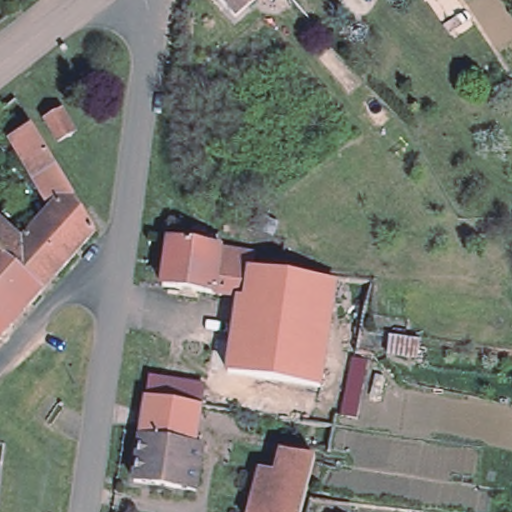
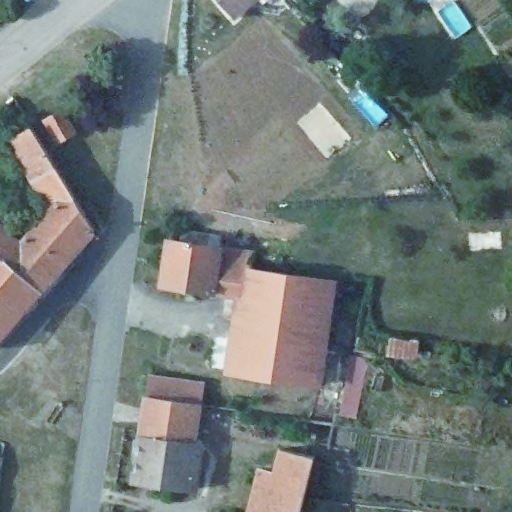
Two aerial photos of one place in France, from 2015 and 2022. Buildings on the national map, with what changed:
unchanged [(236,15),(220,0),(251,0),(236,15)]
unchanged [(62,107),(74,127),(58,137),(45,116),(62,107)]
unchanged [(33,125),(70,185),(52,204),(42,195),(11,138),(33,125)]
unchanged [(70,185),(95,227),(55,272),(22,238),(52,204),(70,185)]
unchanged [(22,238),(55,272),(42,287),(0,251),(0,219),(22,238)]
unchanged [(220,248),(213,292),(162,285),(168,241),(220,248)]
unchanged [(255,254),(253,270),(250,269),(245,298),(238,297),(238,296),(213,292),(220,248),(255,254)]
unchanged [(42,287),(10,323),(0,314),(0,251),(42,287)]
unchanged [(214,336),(232,339),(238,297),(245,298),(250,269),(253,270),(334,282),(318,386),(227,372),(209,370),(214,336)]
unchanged [(10,323),(0,335),(0,314),(10,323)]
unchanged [(407,339),(405,355),(375,351),(377,335),(407,339)]
unchanged [(366,359),(355,417),(340,415),(351,356),(366,359)]
unchanged [(148,372),(203,381),(200,406),(145,399),(148,372)]
unchanged [(200,406),(195,443),(140,435),(145,399),(200,406)]
unchanged [(195,443),(201,444),(194,490),(132,482),(140,435),(195,443)]
unchanged [(272,472),(279,448),(312,455),(299,512),(247,512),(257,469),(272,472)]

